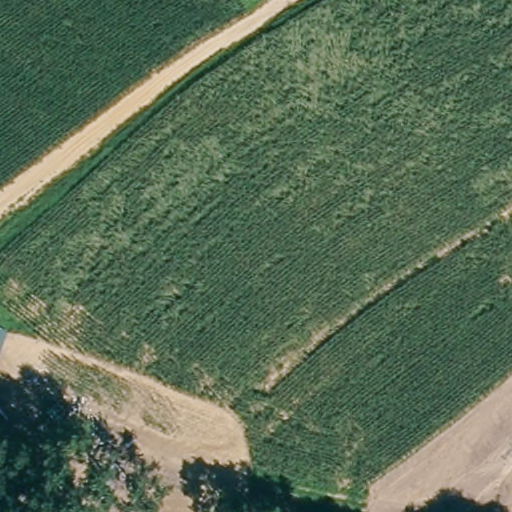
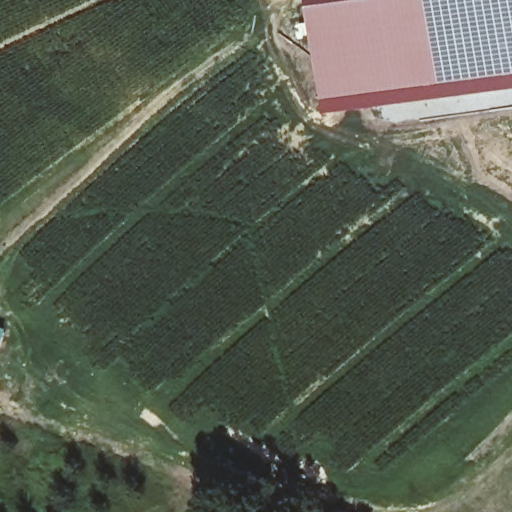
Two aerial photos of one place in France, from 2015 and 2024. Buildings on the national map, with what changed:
new [(325,116),(309,0),(512,0),(512,90),(325,116)]
unchanged [(0,330),(0,324),(1,325),(0,330)]
unchanged [(106,480),(111,465),(136,472),(125,512),(85,512),(93,477),(106,480)]

